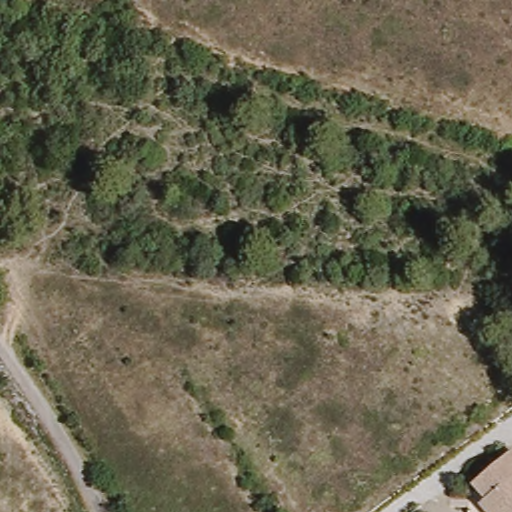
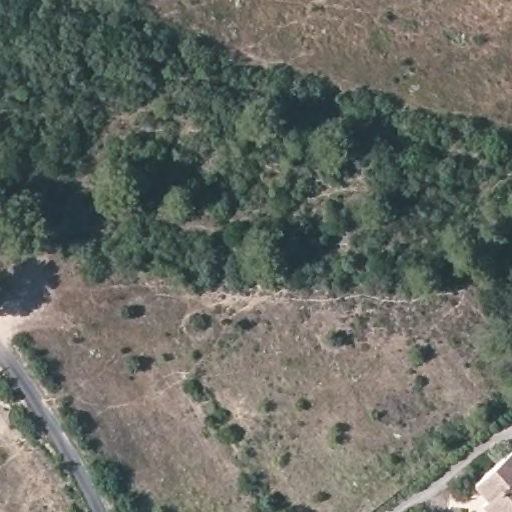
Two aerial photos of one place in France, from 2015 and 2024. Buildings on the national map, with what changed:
unchanged [(489,502),(494,497),(482,482),(512,456),(512,512),(477,512),(489,502)]

